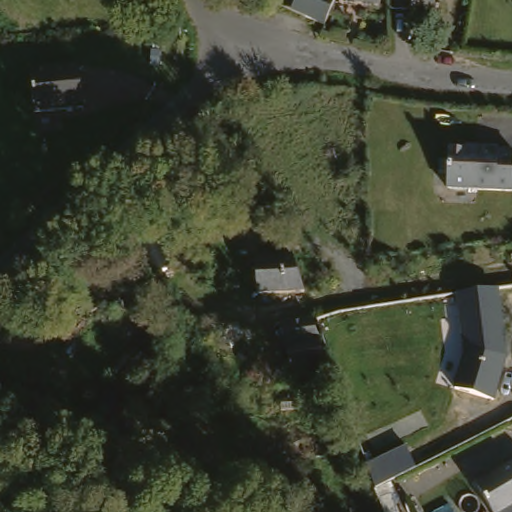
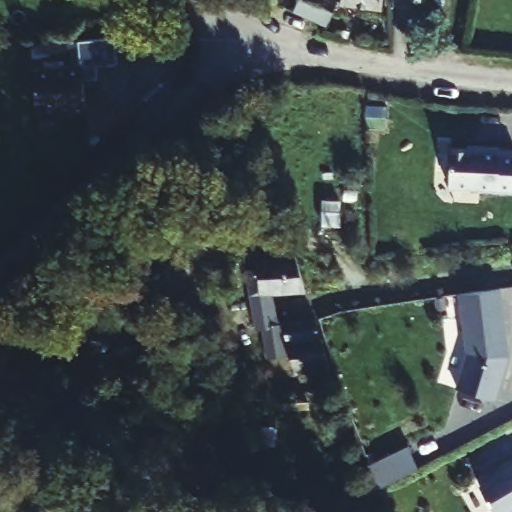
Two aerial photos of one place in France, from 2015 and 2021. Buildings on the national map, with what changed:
unchanged [(320,20),(319,20),(276,2),(276,0),(329,0),(320,20)]
unchanged [(432,7),(409,7),(409,0),(432,0),(432,7)]
unchanged [(77,72),(81,114),(32,117),(29,76),(77,72)]
unchanged [(447,187),(449,147),(477,148),(477,146),(498,146),(498,149),(512,149),(512,189),(447,187)]
unchanged [(317,284),(268,287),(267,255),(314,252),(317,284)]
unchanged [(456,294),(492,288),(502,355),(499,356),(500,364),(499,369),(491,399),(452,389),(462,353),(453,294),(456,294)]
unchanged [(320,306),(325,338),(281,347),(277,314),(320,306)]
unchanged [(396,492),(393,495),(400,512),(383,512),(372,486),(364,465),(407,444),(418,467),(392,481),(396,492)]
unchanged [(487,512),(472,485),(494,473),(492,471),(507,462),(511,467),(512,466),(512,512),(487,512)]

